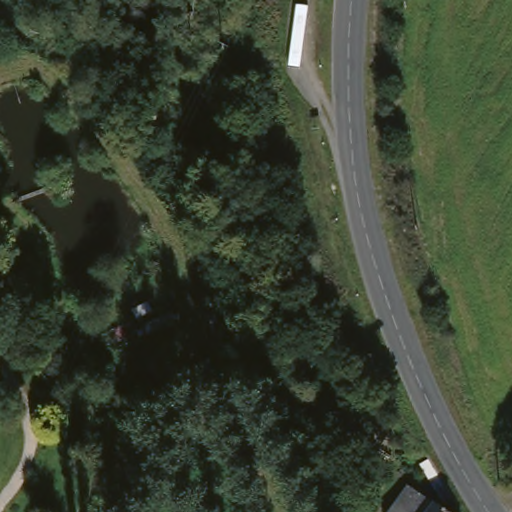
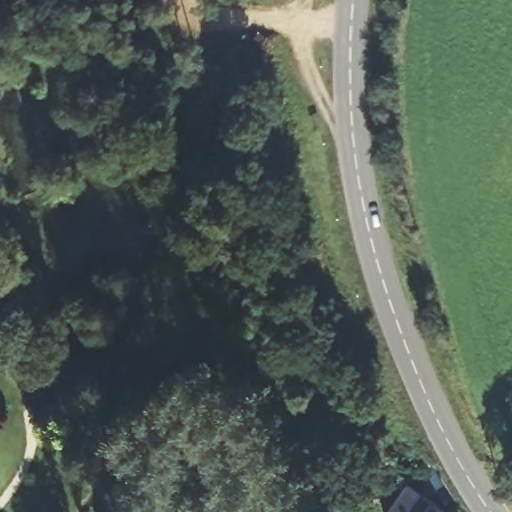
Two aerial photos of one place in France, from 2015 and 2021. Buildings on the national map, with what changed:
unchanged [(414,482),(459,512),(394,512),(414,482)]

